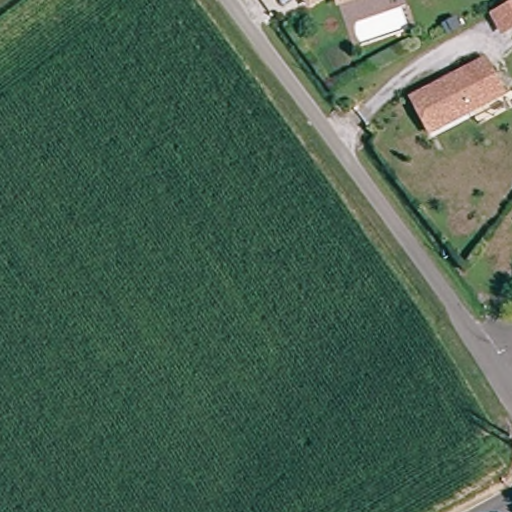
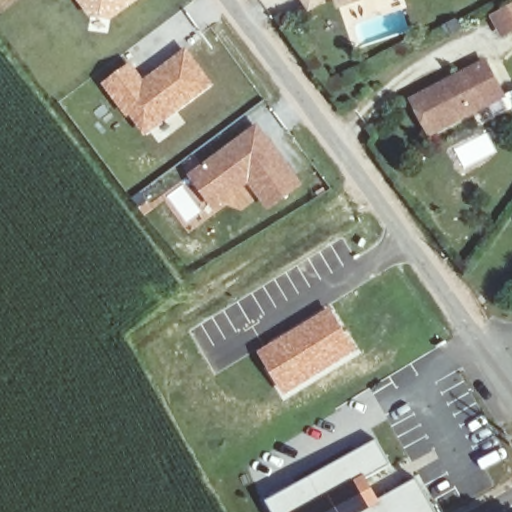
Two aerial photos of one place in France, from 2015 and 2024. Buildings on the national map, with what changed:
new [(100,22),(93,25),(75,0),(138,0),(102,24),(100,22)]
unchanged [(300,0),(321,0),(307,11),(300,0)]
unchanged [(350,0),(338,4),(337,0),(350,0)]
unchanged [(512,38),(508,40),(497,20),(512,12),(512,38)]
new [(130,62),(144,79),(186,48),(214,84),(143,137),(100,85),(130,62)]
unchanged [(456,82),(487,65),(505,99),(433,138),(414,104),(445,87),(456,82)]
new [(257,123),(304,185),(267,212),(257,199),(238,212),(228,202),(214,213),(186,175),(257,123)]
new [(328,307),(357,352),(284,397),(257,352),(328,307)]
new [(268,502),(377,441),(392,466),(367,478),(379,501),(418,480),(436,512),(274,512),(268,502)]

